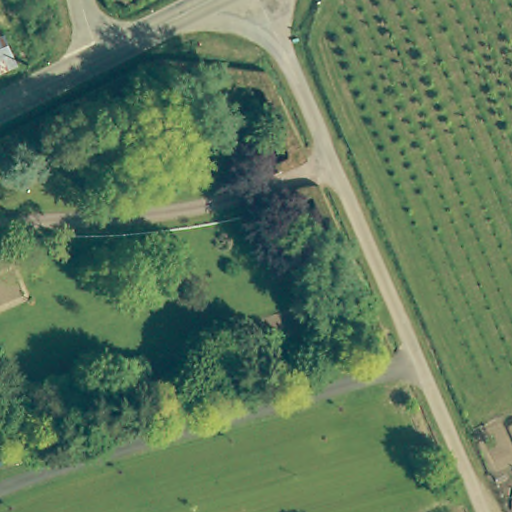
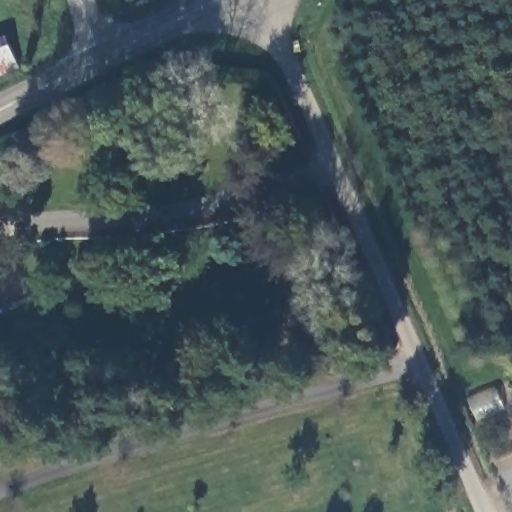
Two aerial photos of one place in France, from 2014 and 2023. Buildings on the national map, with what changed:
unchanged [(2,48),(16,79),(0,88),(0,49),(2,48)]

